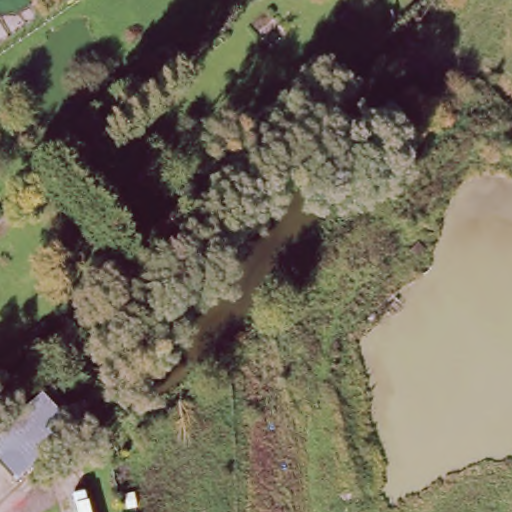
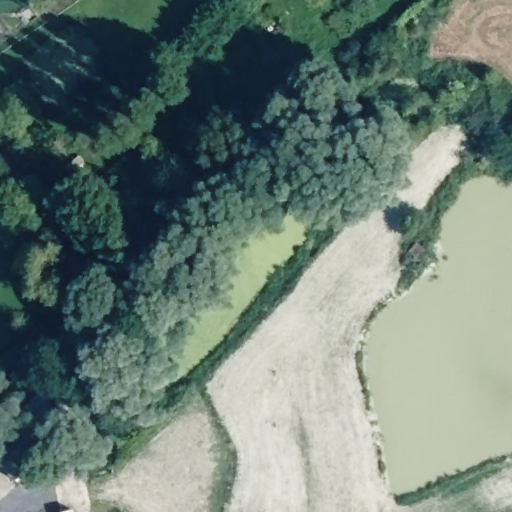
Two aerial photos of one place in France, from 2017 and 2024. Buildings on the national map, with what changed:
unchanged [(0,427),(33,395),(68,434),(12,483),(0,469),(0,427)]

